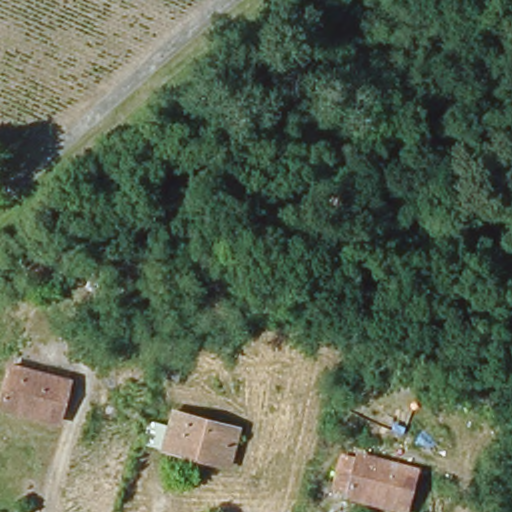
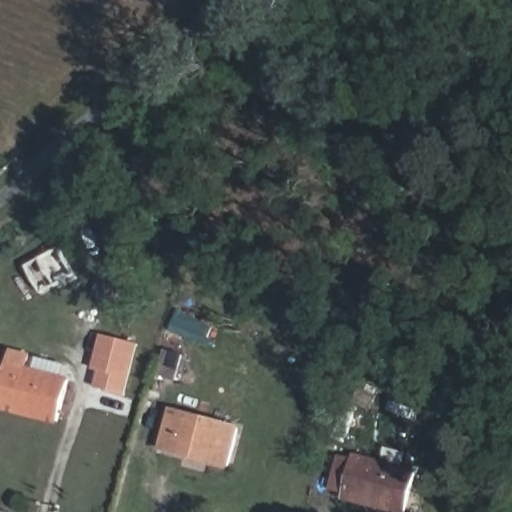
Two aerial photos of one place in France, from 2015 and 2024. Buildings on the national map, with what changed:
unchanged [(28,265),(39,258),(52,281),(41,289),(28,265)]
new [(126,394),(95,387),(99,372),(92,370),(101,335),(139,345),(126,394)]
unchanged [(175,389),(154,383),(162,360),(182,365),(175,389)]
unchanged [(8,368),(64,383),(52,421),(0,408),(0,396),(8,368)]
unchanged [(163,448),(174,411),(236,430),(225,467),(163,448)]
unchanged [(343,491),(329,487),(337,461),(351,465),(354,457),(414,473),(404,512),(375,512),(340,502),(343,491)]

